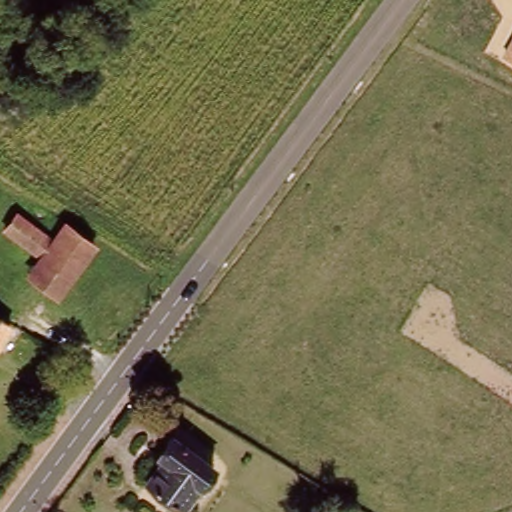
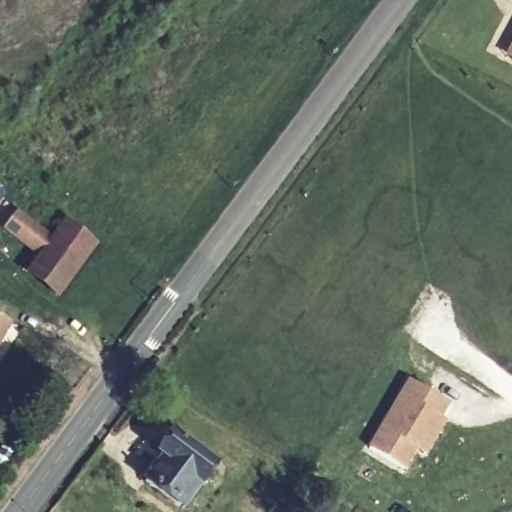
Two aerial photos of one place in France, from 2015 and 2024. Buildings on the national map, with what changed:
unchanged [(506,55),(512,44),(512,59),(506,55)]
unchanged [(94,251),(60,298),(30,277),(42,262),(9,234),(20,219),(54,245),(66,230),(94,251)]
unchanged [(0,343),(0,321),(10,327),(0,343)]
new [(421,456),(412,450),(399,471),(366,450),(406,383),(444,405),(436,420),(441,422),(421,456)]
unchanged [(209,482),(214,485),(192,512),(144,477),(158,458),(154,456),(146,457),(141,453),(150,441),(156,443),(156,447),(162,452),(175,437),(218,466),(209,482)]

